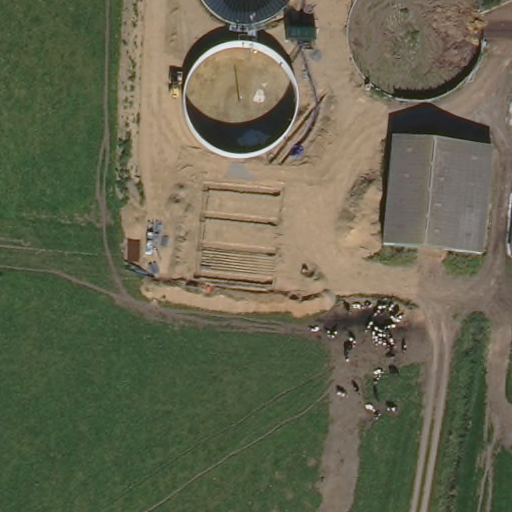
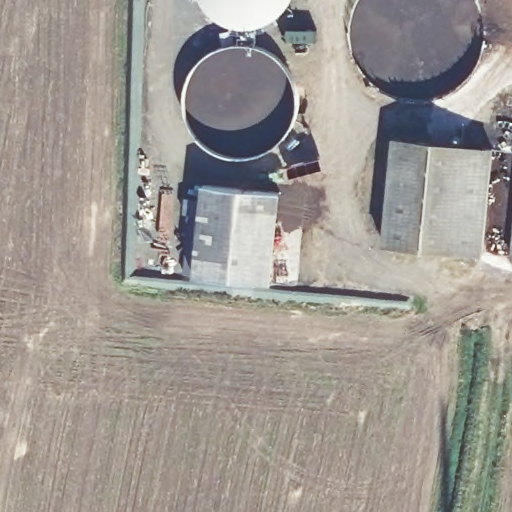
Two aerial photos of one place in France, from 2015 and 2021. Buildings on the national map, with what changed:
unchanged [(495,145),(483,250),(384,237),(396,133),(495,145)]
new [(184,207),(185,192),(202,194),(204,178),(280,187),(269,278),(194,269),(182,268),(189,208),(184,207)]

